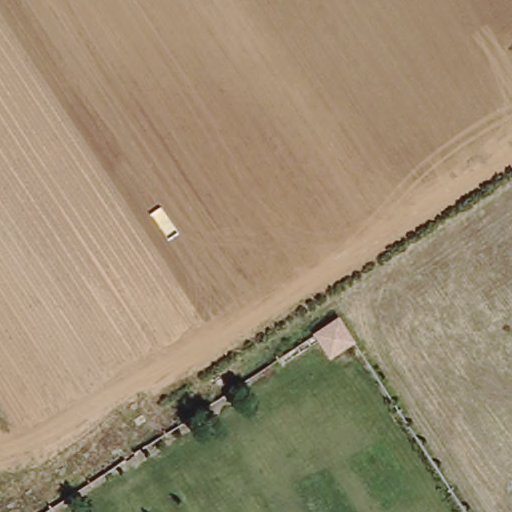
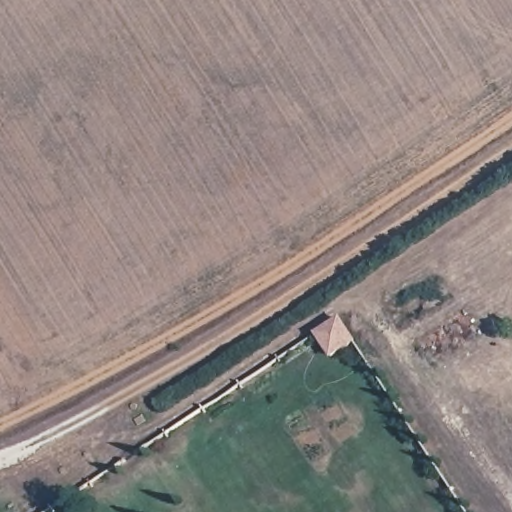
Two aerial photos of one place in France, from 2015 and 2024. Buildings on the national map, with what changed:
unchanged [(311,323),(331,308),(347,331),(325,346),(311,323)]

